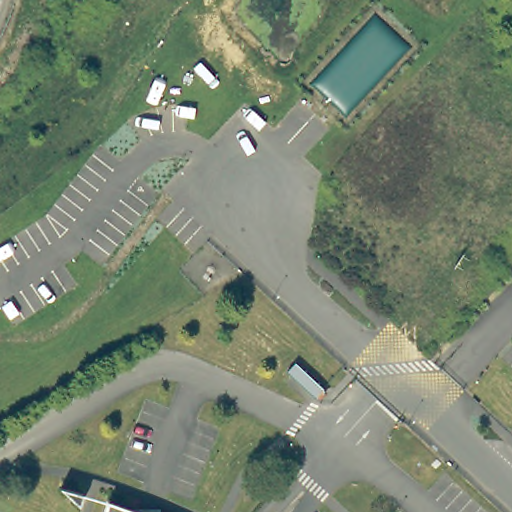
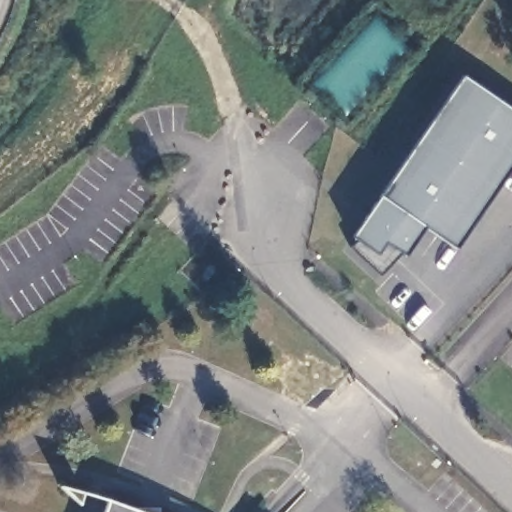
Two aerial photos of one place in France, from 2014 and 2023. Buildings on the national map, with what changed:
new [(356,240),(351,237),(364,218),(463,75),(512,109),(512,170),(457,249),(426,228),(406,257),(402,254),(381,276),(350,247),(356,240)]
demolished [(58,486),(82,492),(79,506),(58,486)]
demolished [(107,512),(111,499),(145,512),(107,512)]
new [(160,507),(160,512),(104,512),(108,500),(130,508),(160,507)]

